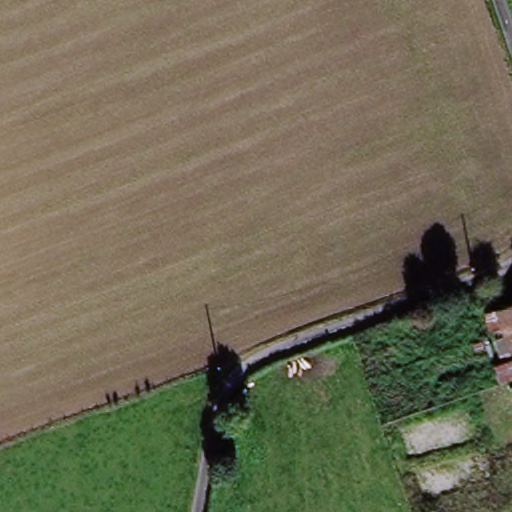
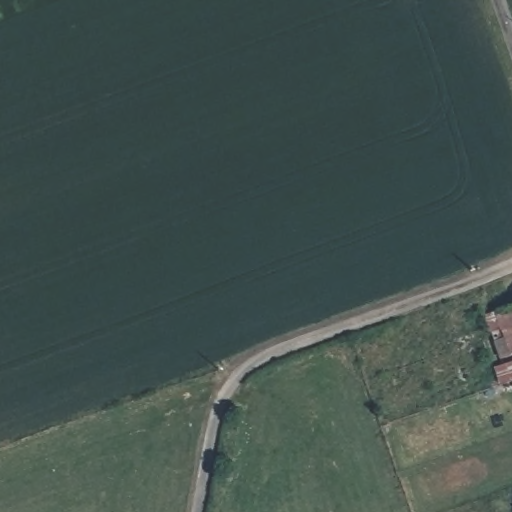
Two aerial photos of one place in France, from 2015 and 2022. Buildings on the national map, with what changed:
unchanged [(512,310),(512,333),(502,336),(495,316),(512,310)]
unchanged [(502,336),(512,333),(512,356),(509,357),(502,336)]

